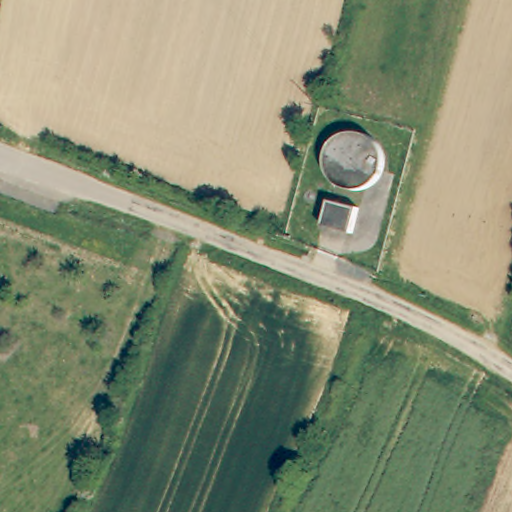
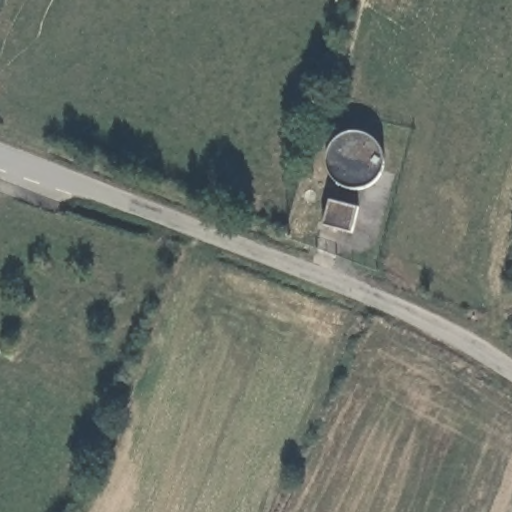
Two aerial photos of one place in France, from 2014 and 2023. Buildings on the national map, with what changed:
unchanged [(325,199),(353,205),(347,232),(318,224),(325,199)]

